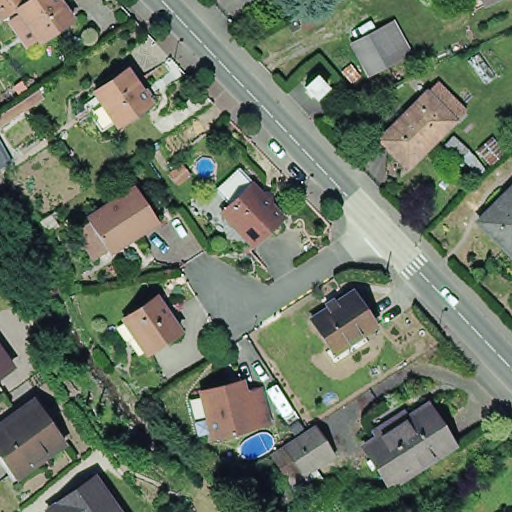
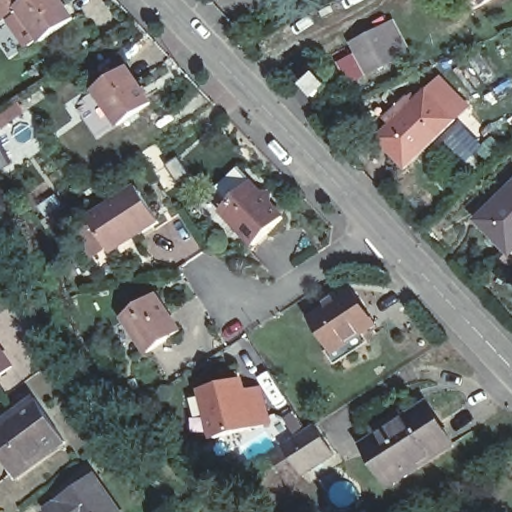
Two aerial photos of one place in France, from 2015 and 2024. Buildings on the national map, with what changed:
unchanged [(28,0),(61,0),(73,17),(40,39),(19,6),(28,0)]
unchanged [(480,0),(492,0),(482,5),(480,0)]
unchanged [(412,52),(365,74),(350,41),(395,17),(412,52)]
unchanged [(125,74),(147,108),(128,120),(115,129),(92,96),(125,74)]
unchanged [(430,93),(440,84),(467,110),(457,120),(410,166),(383,139),(430,93)]
unchanged [(512,146),(490,170),(474,151),(492,134),(512,146)]
unchanged [(279,217),(249,244),(219,210),(249,184),(279,217)]
unchanged [(512,254),(479,222),(512,187),(512,254)]
unchanged [(72,238),(89,227),(85,222),(134,192),(155,226),(107,257),(105,253),(87,263),(72,238)]
unchanged [(342,346),(322,317),(338,306),(335,302),(345,294),(349,299),(362,290),(383,322),(371,331),(345,349),(342,346)]
unchanged [(144,351),(122,317),(154,297),(175,330),(144,351)]
unchanged [(0,348),(14,368),(0,378),(0,348)]
unchanged [(262,427),(247,429),(206,440),(194,393),(233,385),(235,394),(252,391),(259,414),(262,427)]
unchanged [(15,469),(0,446),(0,423),(38,397),(67,440),(49,453),(45,449),(15,469)]
unchanged [(451,446),(387,487),(361,448),(375,438),(370,432),(401,412),(405,419),(425,406),(451,446)]
unchanged [(278,449),(303,433),(309,429),(327,456),(296,477),(284,484),(266,457),(278,449)]
unchanged [(102,475),(129,512),(59,512),(56,508),(102,475)]

